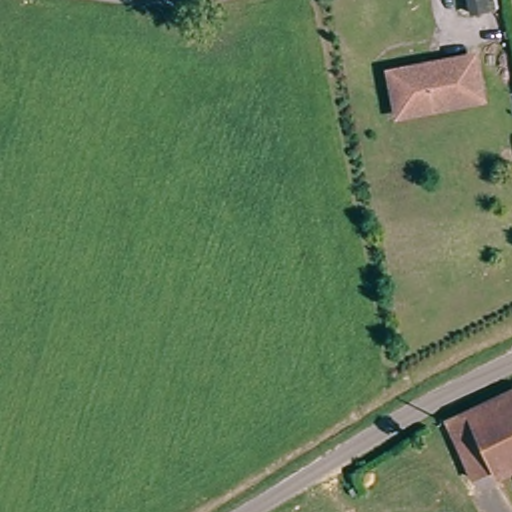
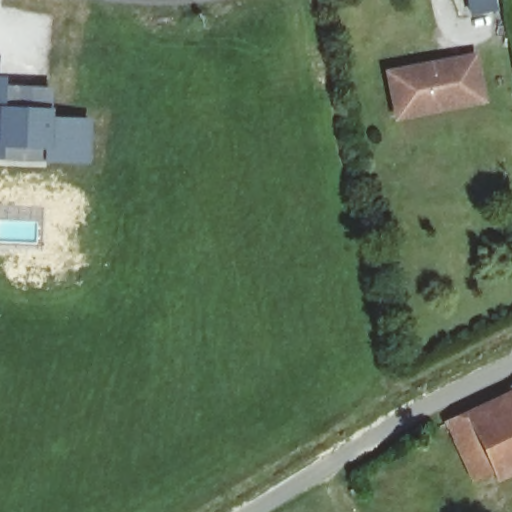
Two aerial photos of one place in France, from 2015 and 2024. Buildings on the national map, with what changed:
unchanged [(478,7),(477,0),(501,0),(501,2),(478,7)]
unchanged [(394,68),(464,54),(475,52),(484,91),(472,94),(401,109),(394,68)]
new [(6,85),(53,87),(53,107),(53,116),(92,117),(91,164),(0,160),(0,76),(6,77),(6,85)]
unchanged [(479,408),(512,393),(512,470),(502,474),(493,447),(479,408)]
unchanged [(479,408),(502,474),(479,486),(452,424),(479,408)]

